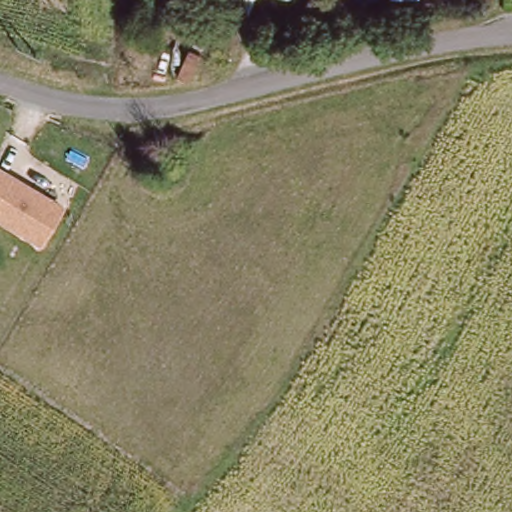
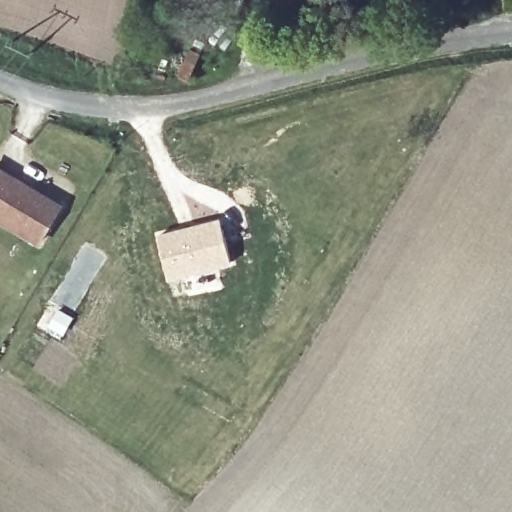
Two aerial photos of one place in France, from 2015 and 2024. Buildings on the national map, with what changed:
unchanged [(0,214),(0,164),(61,202),(40,239),(0,214)]
new [(159,234),(221,217),(232,262),(169,278),(159,234)]

